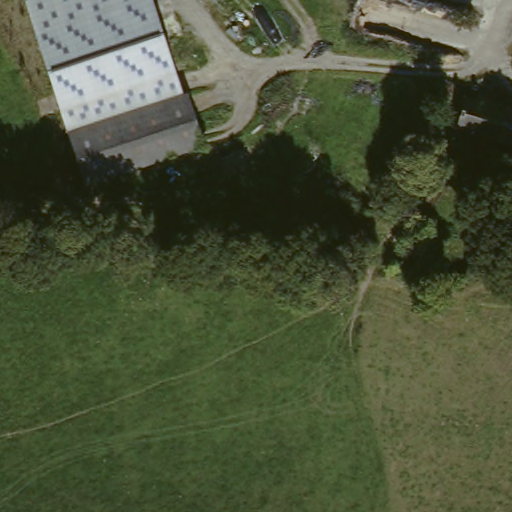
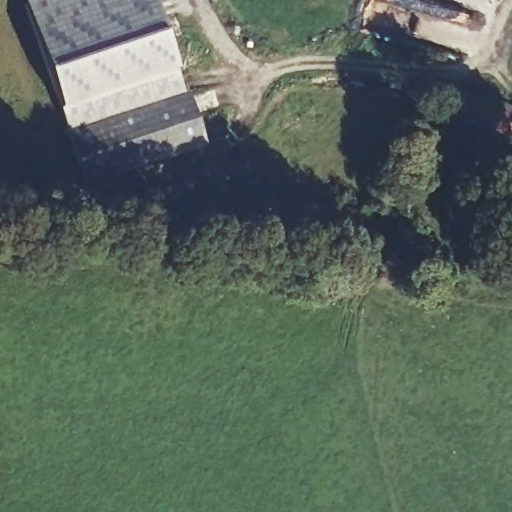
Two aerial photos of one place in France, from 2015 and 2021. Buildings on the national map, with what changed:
unchanged [(25,2),(31,0),(152,0),(174,73),(182,95),(66,132),(60,111),(25,2)]
unchanged [(84,190),(66,132),(189,94),(203,150),(84,190)]
unchanged [(512,150),(461,132),(473,100),(512,114),(512,150)]

